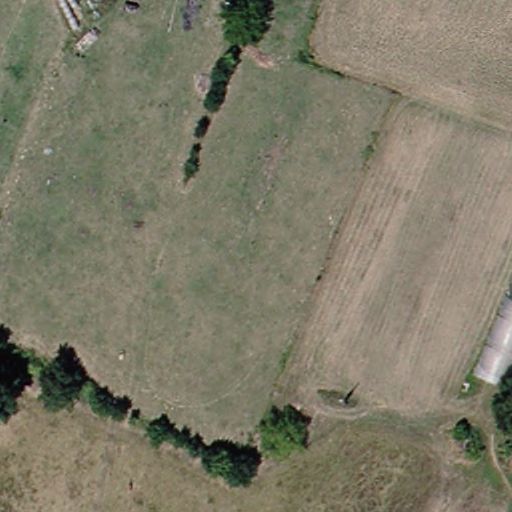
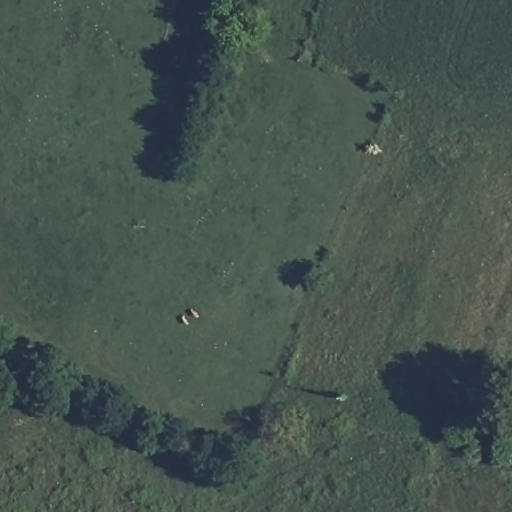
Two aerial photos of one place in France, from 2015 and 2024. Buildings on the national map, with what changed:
demolished [(501,391),(466,376),(512,262),(512,364),(501,391)]
unchanged [(505,469),(507,455),(512,455),(512,469),(505,469)]

